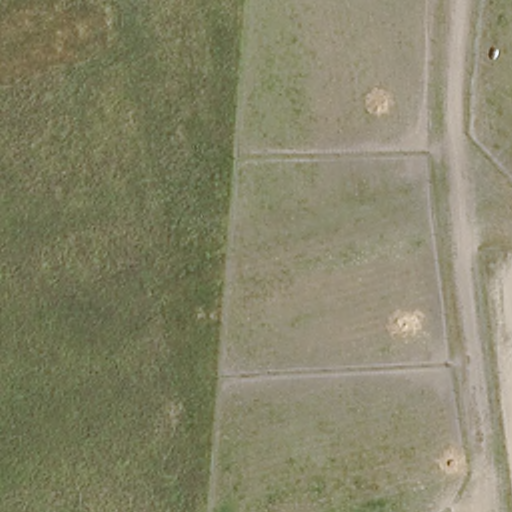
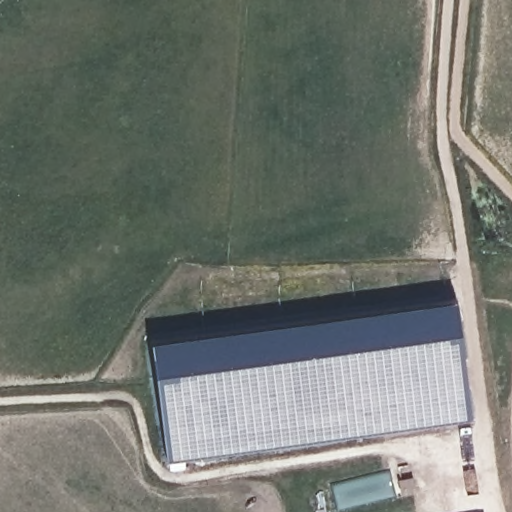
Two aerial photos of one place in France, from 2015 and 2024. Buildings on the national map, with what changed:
new [(154,342),(458,301),(472,416),(171,460),(154,342)]

